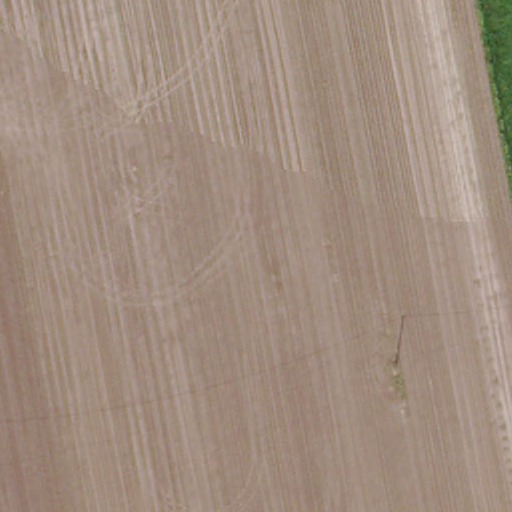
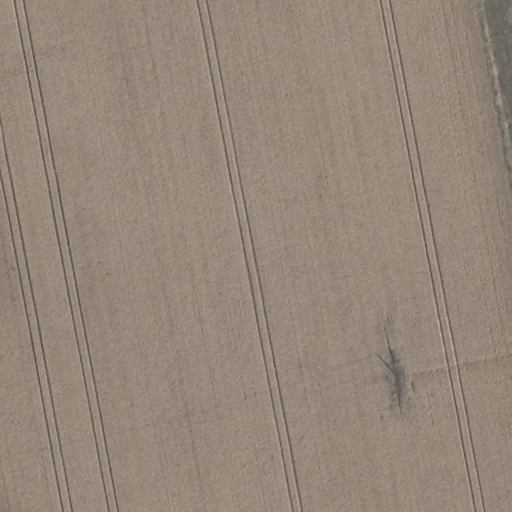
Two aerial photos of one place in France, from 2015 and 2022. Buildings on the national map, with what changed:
[]

